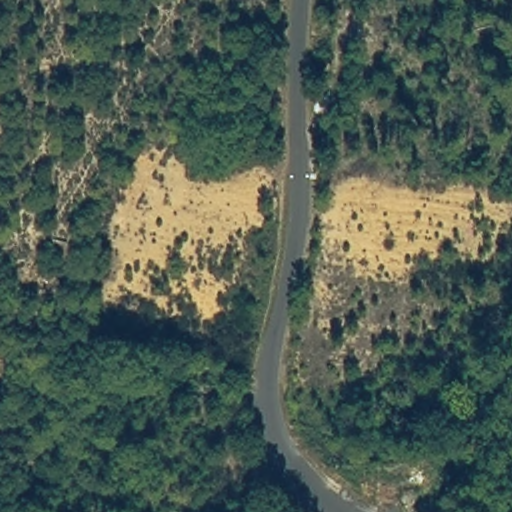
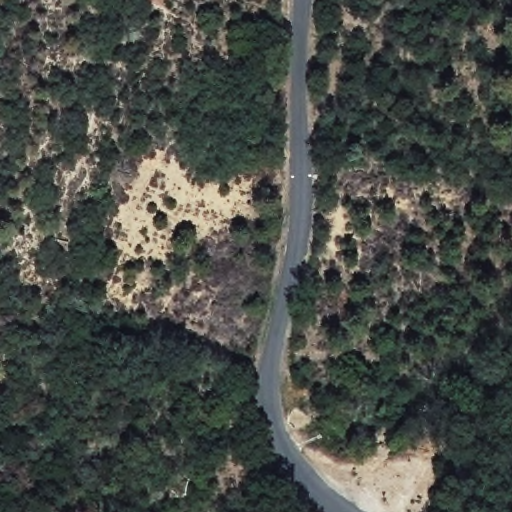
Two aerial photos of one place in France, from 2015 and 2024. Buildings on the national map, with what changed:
unchanged [(259,472),(232,478),(225,451),(250,445),(259,472)]

